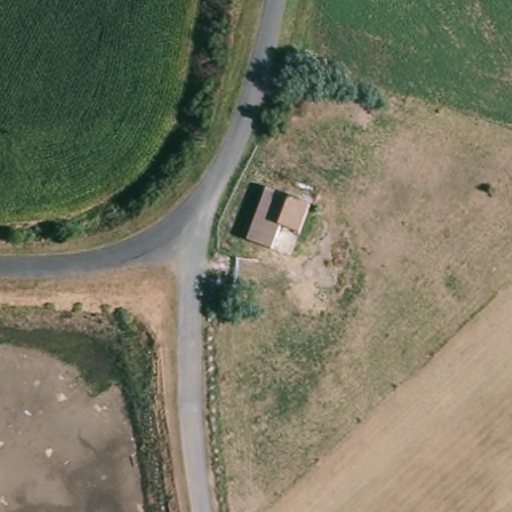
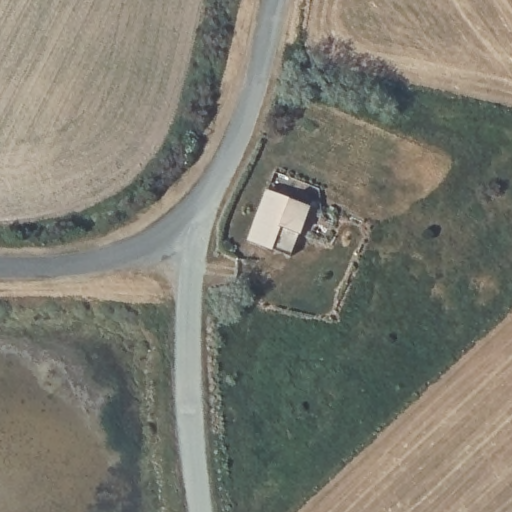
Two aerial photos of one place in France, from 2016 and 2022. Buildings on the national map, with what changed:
unchanged [(271,194),(323,211),(313,240),(281,230),(269,251),(251,244),(271,194)]

